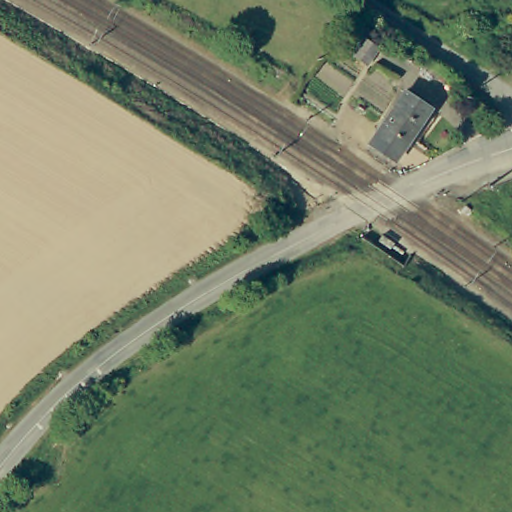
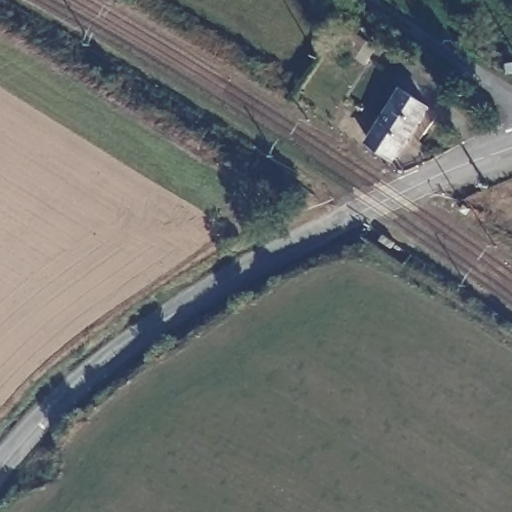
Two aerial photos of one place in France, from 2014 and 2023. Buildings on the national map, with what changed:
unchanged [(430,104),(393,153),(368,136),(403,88),(430,104)]
unchanged [(487,109),(480,119),(470,113),(477,101),(487,109)]

